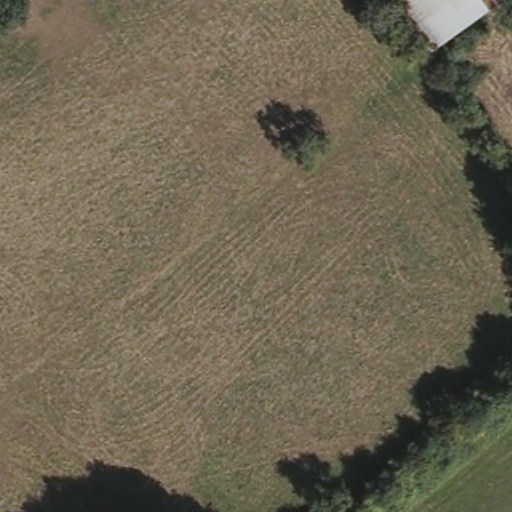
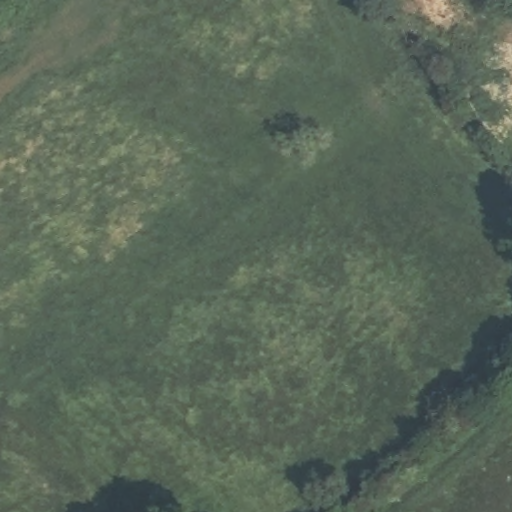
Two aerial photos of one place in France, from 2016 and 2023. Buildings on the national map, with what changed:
demolished [(428,53),(387,0),(500,0),(428,53)]

